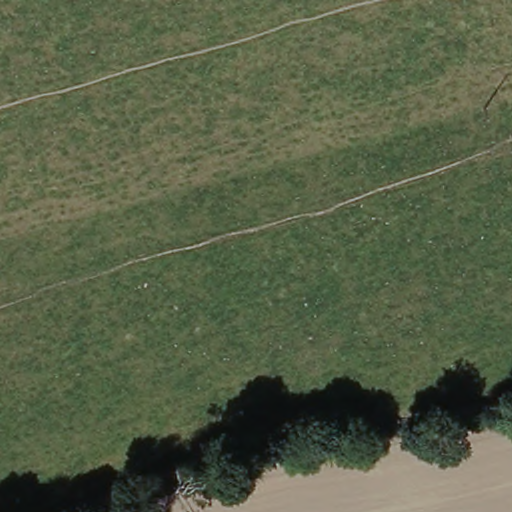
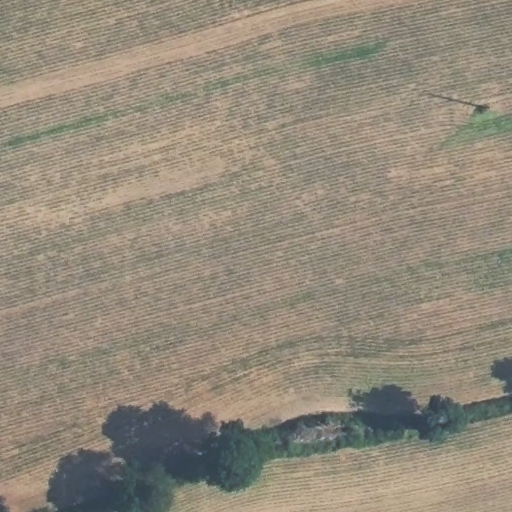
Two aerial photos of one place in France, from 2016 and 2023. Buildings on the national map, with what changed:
[]

